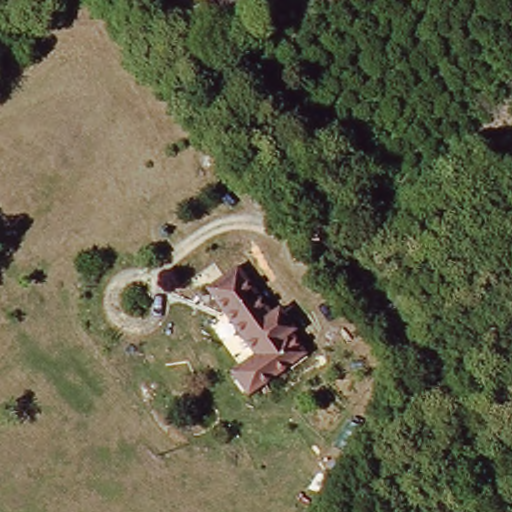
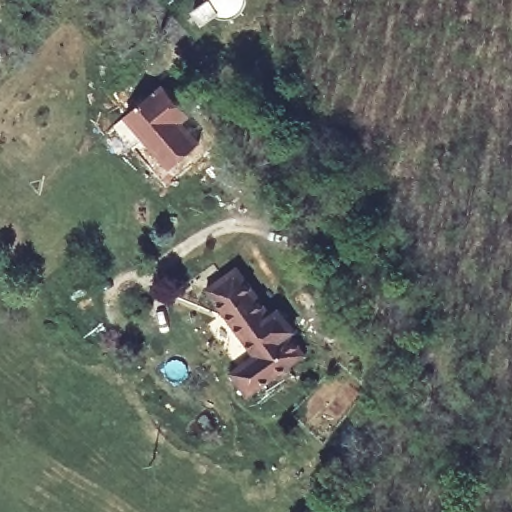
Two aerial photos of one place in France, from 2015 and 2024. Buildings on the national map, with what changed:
new [(160,85),(190,116),(182,122),(201,142),(168,170),(122,117),(160,85)]
unchanged [(231,371),(255,355),(207,290),(242,266),(273,312),(283,307),(301,334),(292,340),(307,357),(248,397),(231,371)]

